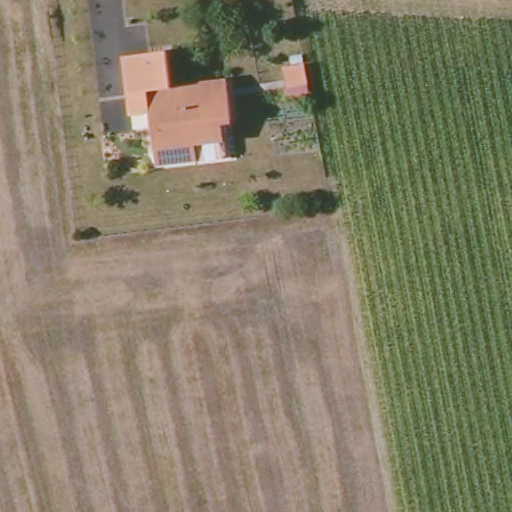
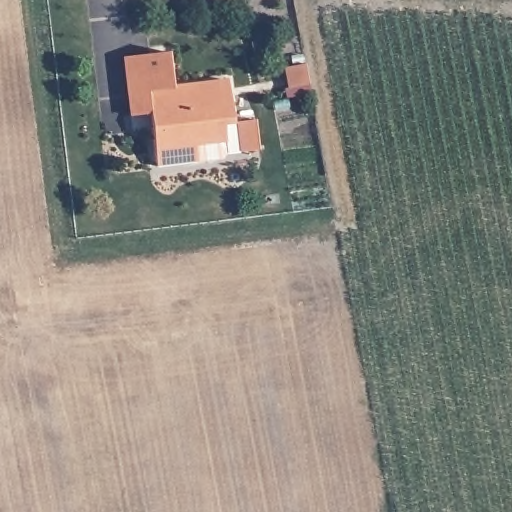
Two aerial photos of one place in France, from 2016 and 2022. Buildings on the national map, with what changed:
unchanged [(159,163),(156,149),(151,113),(133,115),(125,55),(168,50),(173,86),(226,80),(231,120),(223,121),(224,141),(195,144),(195,159),(159,163)]
unchanged [(311,86),(293,90),(290,73),(307,70),(311,86)]

